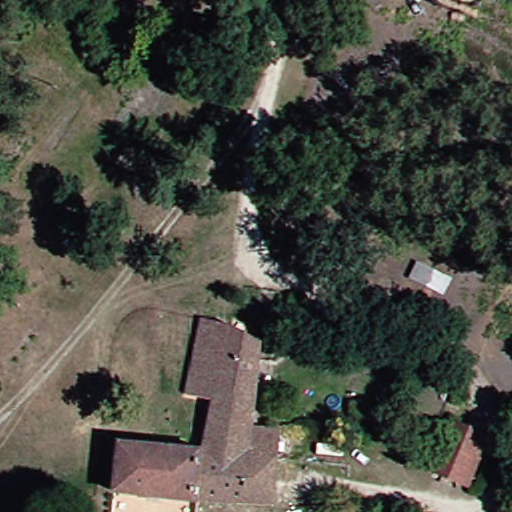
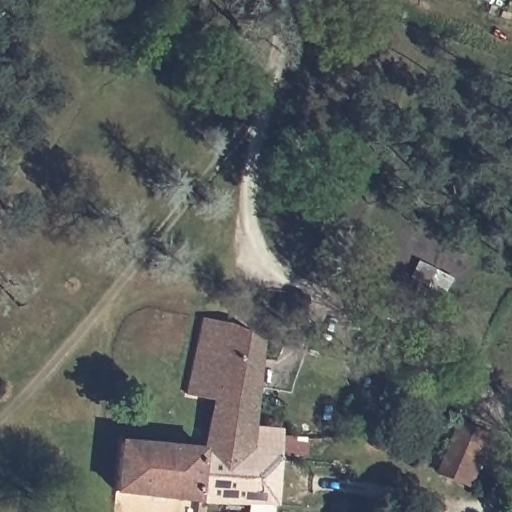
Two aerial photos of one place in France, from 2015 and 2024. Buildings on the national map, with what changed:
unchanged [(199,392),(171,390),(184,312),(212,315),(199,392)]
unchanged [(103,440),(192,442),(195,416),(199,392),(212,315),(223,317),(252,341),(250,425),(260,427),(259,447),(250,446),(247,502),(184,501),(104,492),(103,440)]
unchanged [(483,441),(468,483),(423,462),(439,422),(483,441)]
unchanged [(282,427),(279,509),(247,502),(250,446),(259,447),(260,427),(282,427)]

